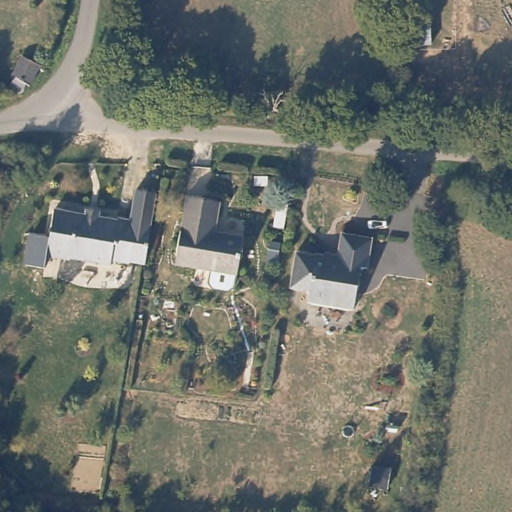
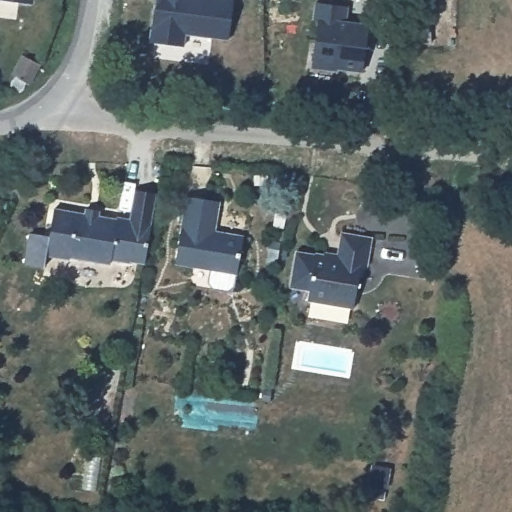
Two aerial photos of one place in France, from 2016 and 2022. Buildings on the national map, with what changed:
new [(32,2),(14,0),(32,0),(32,2)]
new [(152,7),(157,2),(157,0),(231,0),(225,40),(182,33),(180,45),(146,40),(152,7)]
new [(320,25),(316,24),(319,6),(350,11),(347,28),(370,32),(363,76),(338,72),(338,70),(313,66),(320,25)]
unchanged [(40,63),(28,83),(23,82),(21,87),(19,89),(16,89),(14,89),(11,87),(11,85),(11,83),(12,81),(16,77),(11,74),(23,54),(40,63)]
unchanged [(218,198),(213,226),(242,231),(236,266),(175,257),(187,192),(218,198)]
unchanged [(87,208),(102,211),(101,216),(120,220),(121,218),(140,221),(132,263),(114,260),(113,264),(73,257),(73,259),(49,254),(58,208),(86,213),(87,208)]
unchanged [(381,237),(376,266),(369,265),(362,308),(316,300),(318,289),(299,286),(305,250),(324,254),(325,252),(332,253),(332,248),(347,251),(351,232),(381,237)]
unchanged [(274,250),(271,264),(261,263),(264,248),(274,250)]

